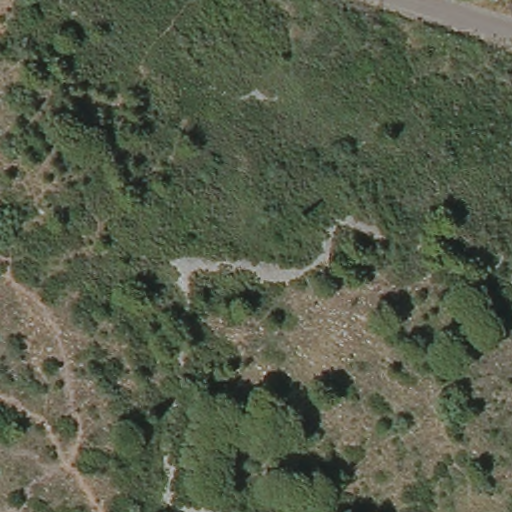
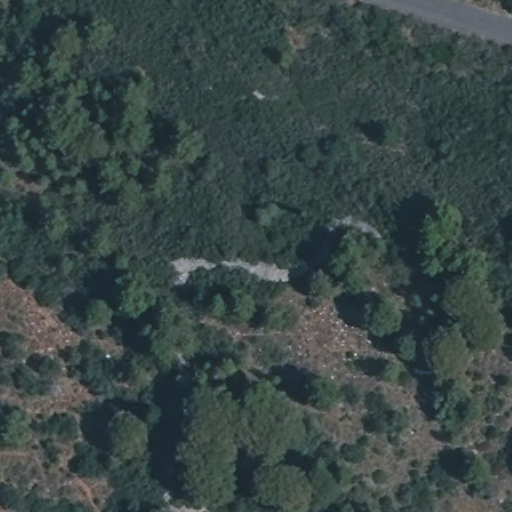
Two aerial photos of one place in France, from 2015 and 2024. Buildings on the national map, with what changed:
[]

